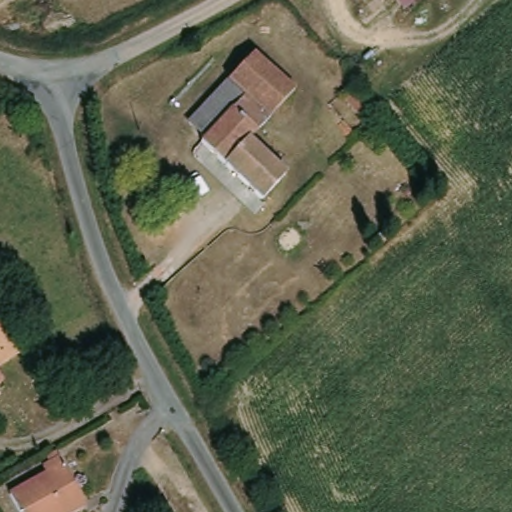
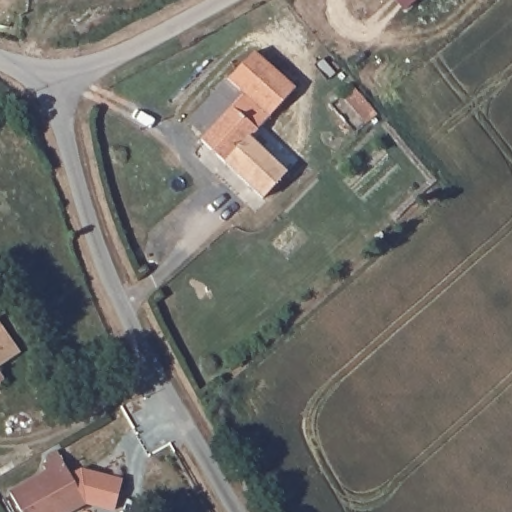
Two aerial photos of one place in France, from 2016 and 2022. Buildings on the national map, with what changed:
unchanged [(403,13),(390,0),(415,0),(403,13)]
unchanged [(258,48),(297,88),(275,111),(236,70),(258,48)]
unchanged [(275,111),(250,138),(285,177),(258,201),(201,143),(212,132),(194,112),(236,70),(275,111)]
unchanged [(363,146),(340,112),(352,104),(374,135),(363,146)]
unchanged [(331,156),(341,145),(353,156),(342,167),(331,156)]
unchanged [(0,352),(0,330),(10,346),(0,352)]
unchanged [(0,382),(0,377),(2,381),(0,382)]
unchanged [(69,512),(19,512),(9,495),(41,475),(38,469),(55,458),(83,504),(69,512)]
new [(116,512),(114,512),(83,504),(66,476),(81,470),(124,480),(116,512)]

